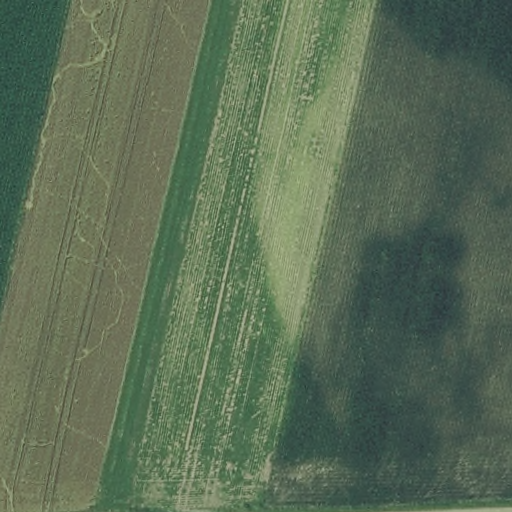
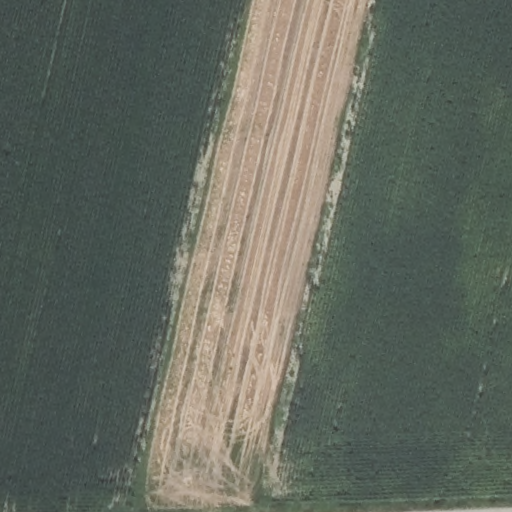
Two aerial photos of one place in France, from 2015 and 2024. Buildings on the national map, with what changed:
[]

